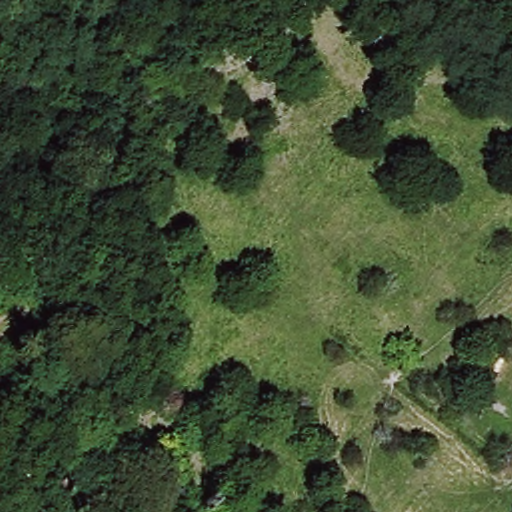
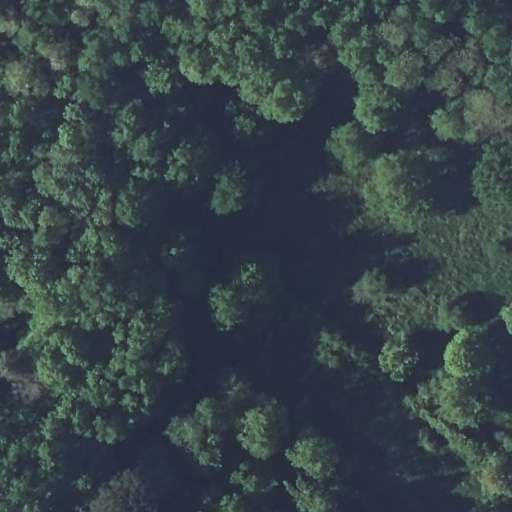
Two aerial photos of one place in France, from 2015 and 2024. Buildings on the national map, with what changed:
unchanged [(21,305),(0,288),(0,285),(10,272),(14,276),(17,272),(29,281),(27,285),(33,290),(21,305)]

